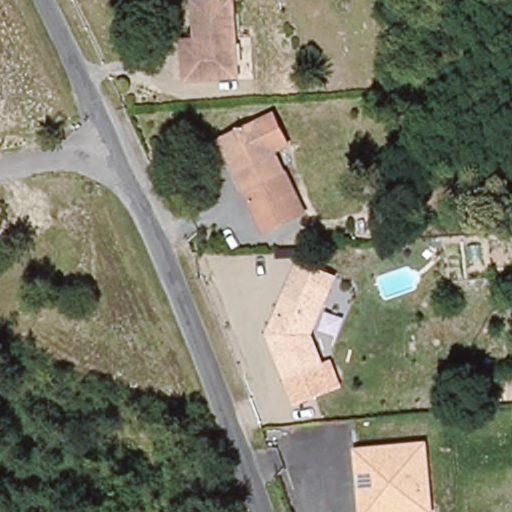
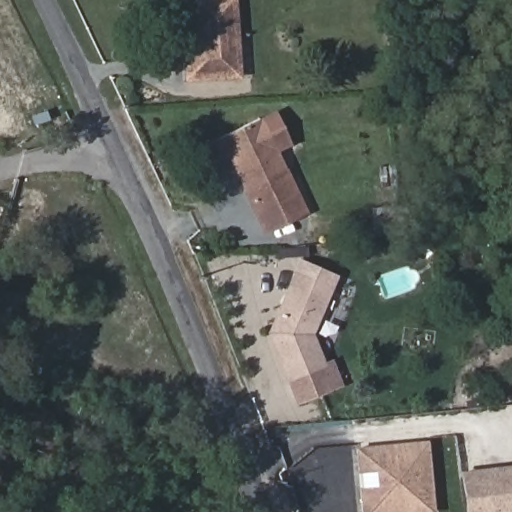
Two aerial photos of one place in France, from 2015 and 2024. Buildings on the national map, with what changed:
unchanged [(200,2),(221,0),(237,0),(244,73),(196,78),(192,52),(191,40),(204,39),(200,2)]
unchanged [(265,117),(307,214),(267,230),(223,135),(265,117)]
unchanged [(410,237),(371,241),(367,207),(406,205),(410,237)]
unchanged [(276,322),(282,314),(278,310),(296,270),(301,260),(336,277),(331,287),(309,332),(320,363),(328,360),(337,384),(293,399),(268,329),(273,320),(276,322)]
unchanged [(364,488),(378,487),(377,470),(362,470),(359,448),(425,444),(432,511),(426,512),(366,512),(364,488)]
new [(459,471),(512,465),(512,512),(464,512),(459,471)]

